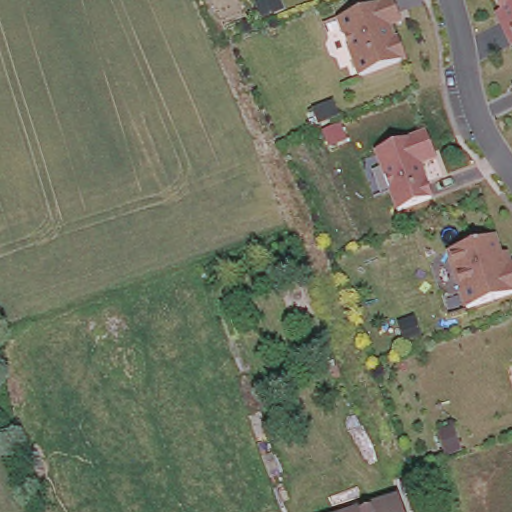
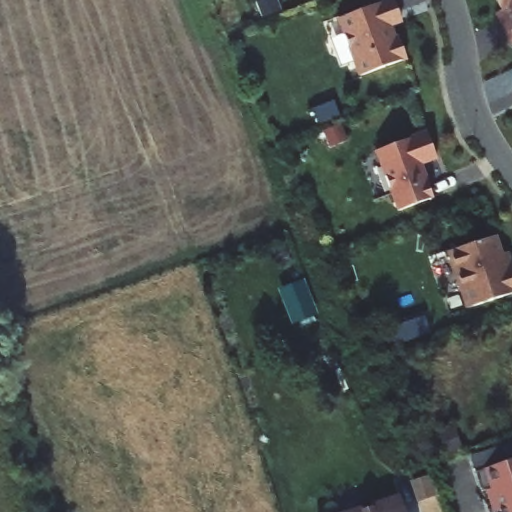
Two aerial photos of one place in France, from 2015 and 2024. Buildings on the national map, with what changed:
unchanged [(381,15),(389,36),(393,34),(401,55),(353,72),(333,15),(372,0),(389,0),(394,11),(381,15)]
unchanged [(506,42),(493,15),(498,12),(491,0),(512,0),(512,39),(506,42)]
unchanged [(429,159),(414,165),(427,199),(392,212),(369,152),(420,133),(429,159)]
unchanged [(461,305),(442,249),(489,233),(495,251),(497,250),(502,262),(512,258),(512,288),(461,305)]
new [(484,471),(512,461),(512,512),(498,512),(484,471)]
unchanged [(354,507),(374,501),(397,493),(403,512),(340,512),(354,507)]

